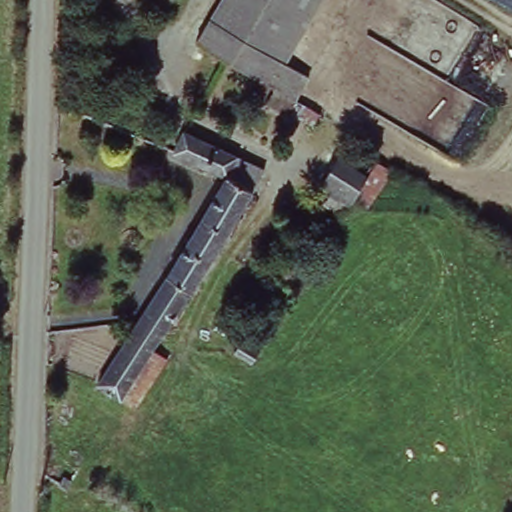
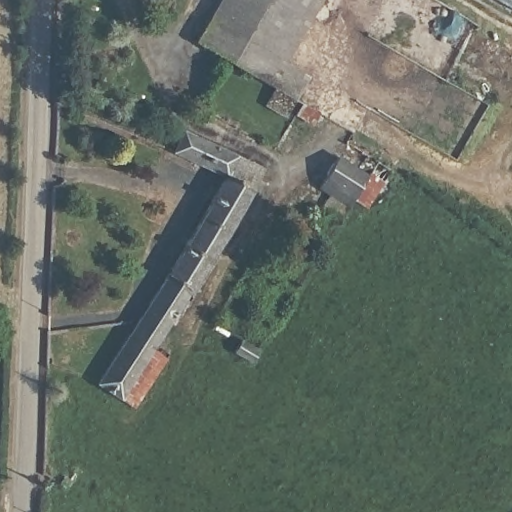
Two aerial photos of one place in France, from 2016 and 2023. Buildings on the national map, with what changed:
unchanged [(213,0),(309,0),(272,62),(312,89),(309,95),(302,109),(193,37),(204,15),(213,0)]
unchanged [(512,15),(489,0),(512,0),(512,15)]
unchanged [(168,353),(138,403),(103,382),(122,350),(216,177),(160,151),(173,125),(230,150),(259,163),(244,191),(161,346),(168,353)]
unchanged [(355,154),(390,172),(368,206),(336,187),(355,154)]
unchanged [(238,323),(254,332),(245,350),(228,338),(238,323)]
unchanged [(55,493),(44,485),(52,472),(64,482),(55,493)]

